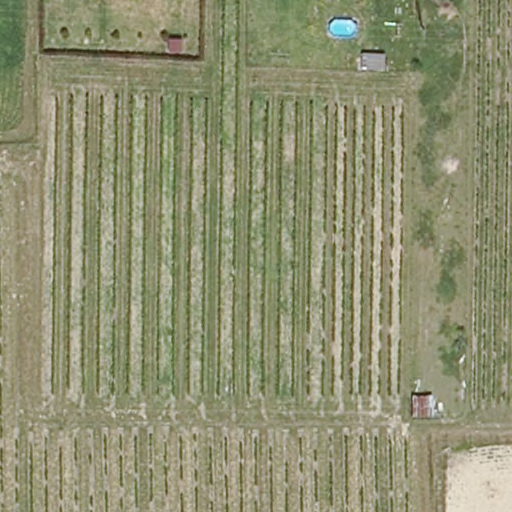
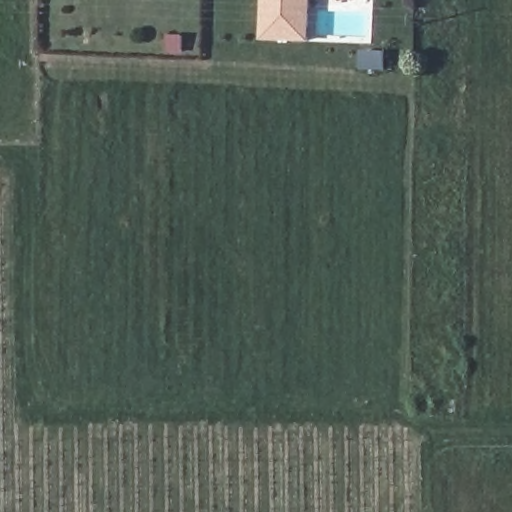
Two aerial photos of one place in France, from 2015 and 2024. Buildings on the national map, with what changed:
new [(309,43),(261,41),(263,0),(311,0),(309,43)]

